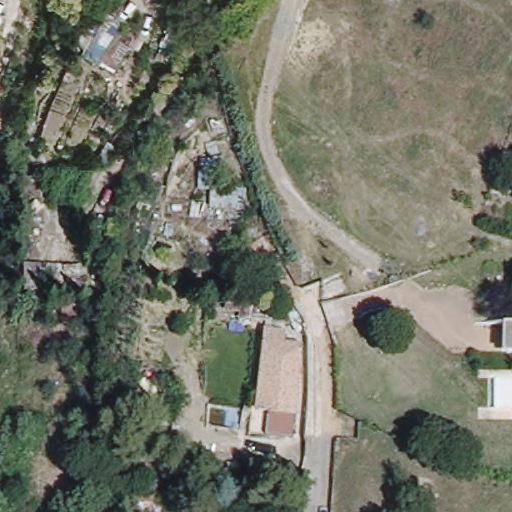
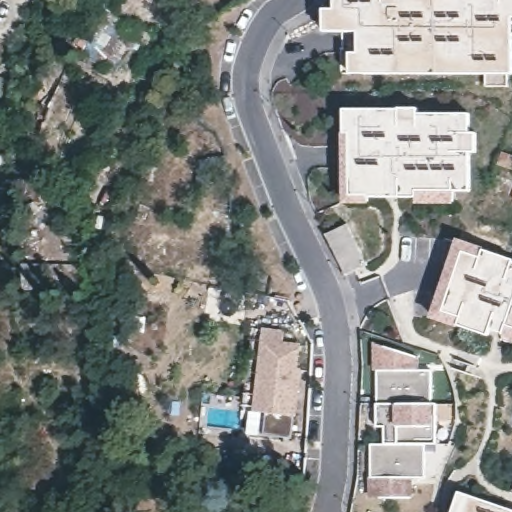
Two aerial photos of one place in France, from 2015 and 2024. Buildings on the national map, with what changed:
unchanged [(84,0),(80,5),(74,0),(84,0)]
new [(113,0),(127,9),(116,25),(140,41),(135,50),(131,47),(114,73),(80,51),(113,0)]
new [(508,86),(486,86),(485,74),(350,74),(350,52),(358,52),(359,31),(324,31),(324,9),(335,8),(336,0),(512,0),(512,73),(508,73),(508,86)]
demolished [(347,36),(351,58),(327,62),(323,39),(347,36)]
demolished [(427,116),(419,150),(376,139),(384,106),(427,116)]
new [(420,109),(420,113),(470,113),(471,132),(477,131),(477,152),(470,152),(471,189),(454,190),(454,203),(415,203),(415,197),(369,197),(369,202),(343,202),(343,132),(344,132),(344,109),(420,109)]
new [(367,262),(344,275),(326,236),(347,223),(367,262)]
new [(484,250),(512,259),(512,337),(490,329),(487,336),(429,317),(458,236),(485,247),(484,250)]
new [(23,290),(24,262),(83,264),(82,291),(23,290)]
unchanged [(192,266),(212,270),(210,284),(190,280),(192,266)]
unchanged [(244,313),(237,312),(236,314),(222,312),(225,293),(246,297),(244,313)]
unchanged [(304,323),(307,329),(308,332),(297,337),(286,314),(282,307),(292,302),(304,323)]
unchanged [(247,431),(248,425),(250,407),(251,391),(258,392),(267,310),(278,311),(277,323),(272,323),(271,330),(280,331),(279,342),(299,345),(297,367),(300,368),(293,430),(292,435),(247,431)]
unchanged [(188,311),(189,324),(175,325),(175,312),(188,311)]
new [(419,355),(420,369),(431,369),(431,402),(437,402),(438,445),(424,446),(425,477),(412,477),(413,498),(369,498),(368,476),(371,476),(370,443),(384,441),(383,425),(377,425),(377,368),(372,368),(373,339),(419,355)]
new [(460,492),(512,509),(512,512),(452,512),(460,492)]

